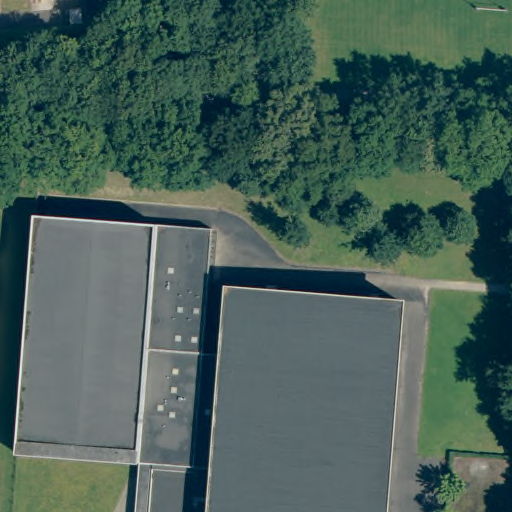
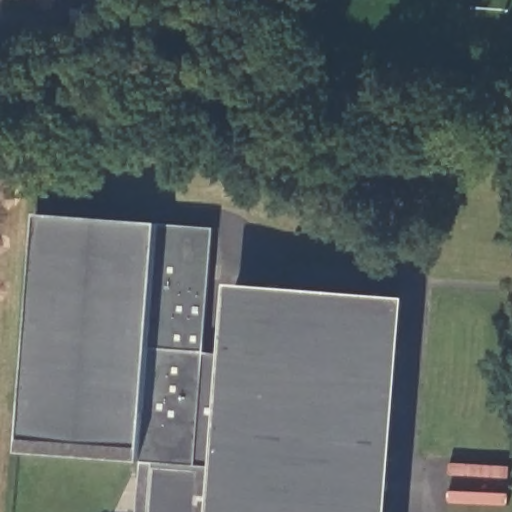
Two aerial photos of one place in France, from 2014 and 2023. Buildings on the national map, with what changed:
unchanged [(19,442),(29,309),(35,216),(158,225),(212,229),(204,354),(230,356),(229,359),(226,394),(220,394),(220,399),(226,400),(222,447),(215,447),(215,453),(221,453),(220,469),(195,467),(152,464),(149,512),(136,512),(140,463),(141,451),(19,442)]
unchanged [(199,476),(199,482),(199,484),(219,486),(220,483),(220,469),(221,453),(215,453),(215,447),(222,447),(226,400),(220,399),(220,394),(226,394),(229,359),(230,356),(230,346),(224,346),(225,340),(230,341),(235,292),(231,292),(232,289),(235,289),(404,303),(403,307),(400,306),(396,353),(403,354),(403,359),(396,358),(392,407),(399,408),(398,413),(391,413),(387,461),(394,462),(393,467),(387,467),(383,512),(151,512),(155,472),(199,476)]

